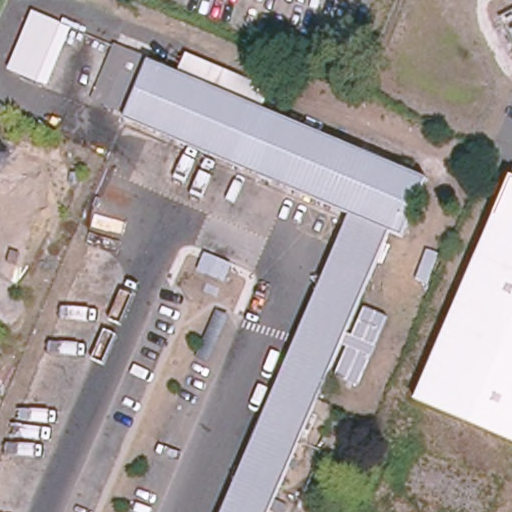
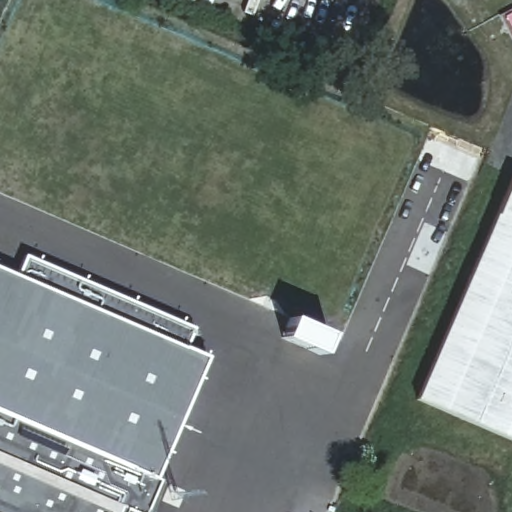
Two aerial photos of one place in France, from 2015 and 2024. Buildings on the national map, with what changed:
demolished [(428,178),(403,237),(391,231),(360,300),(329,373),(305,430),(269,512),(223,512),(273,394),(290,356),(351,215),(126,119),(129,112),(95,98),(116,46),(179,73),(187,54),(271,89),(262,108),(428,178)]
unchanged [(512,443),(419,403),(512,185),(512,443)]
new [(17,276),(26,254),(195,328),(186,347),(207,356),(156,478),(160,480),(147,512),(138,512),(127,507),(125,512),(0,512),(0,269),(17,276)]
demolished [(360,300),(388,314),(356,384),(329,373),(360,300)]

